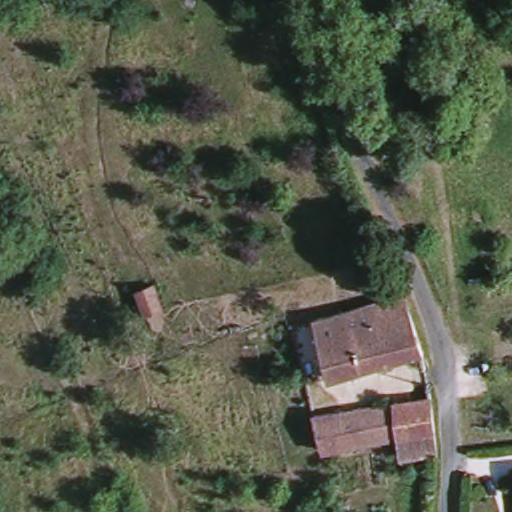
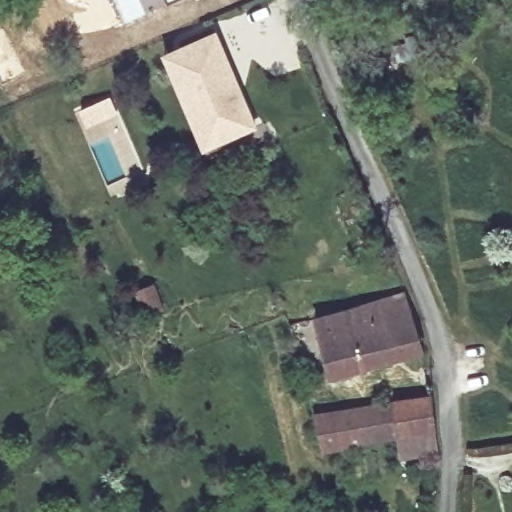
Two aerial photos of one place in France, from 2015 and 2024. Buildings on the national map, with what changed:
new [(216,29),(257,128),(201,153),(159,53),(216,29)]
new [(109,95),(117,116),(85,132),(75,110),(109,95)]
unchanged [(421,354),(332,379),(317,323),(402,299),(421,354)]
unchanged [(315,423),(429,397),(431,454),(402,460),(396,440),(324,456),(315,423)]

